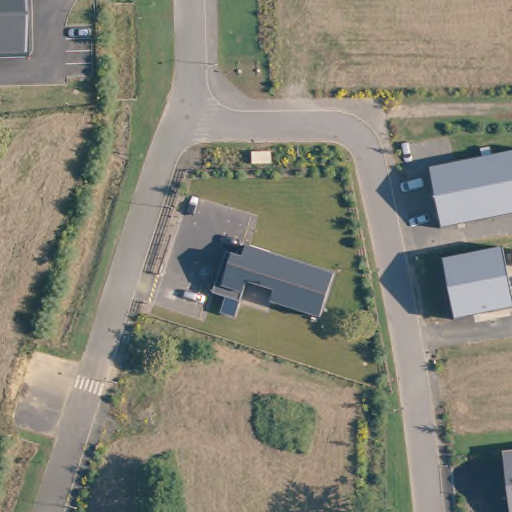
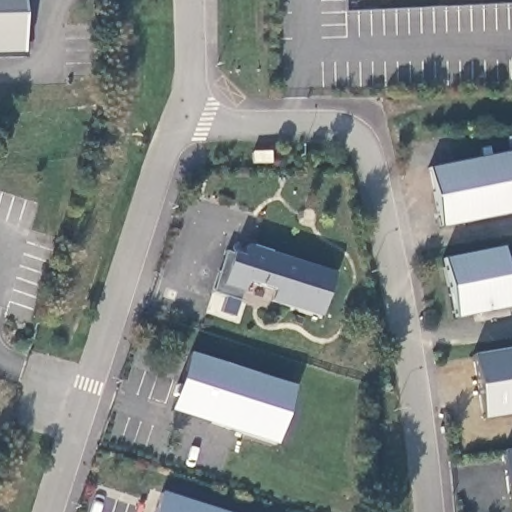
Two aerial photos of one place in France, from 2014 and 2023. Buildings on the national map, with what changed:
unchanged [(0,0),(23,0),(24,56),(0,56),(0,0)]
unchanged [(433,167),(512,152),(512,213),(442,226),(433,167)]
unchanged [(273,301),(277,290),(247,282),(236,316),(222,312),(227,295),(217,292),(230,251),(235,252),(249,256),(252,244),(337,272),(324,319),(273,301)]
unchanged [(448,257),(507,245),(512,275),(512,309),(459,318),(448,257)]
new [(512,349),(512,414),(483,418),(472,356),(512,349)]
new [(294,387),(275,443),(170,410),(189,354),(294,387)]
unchanged [(506,449),(512,449),(512,496),(506,449)]
new [(162,495),(213,512),(157,512),(162,495)]

